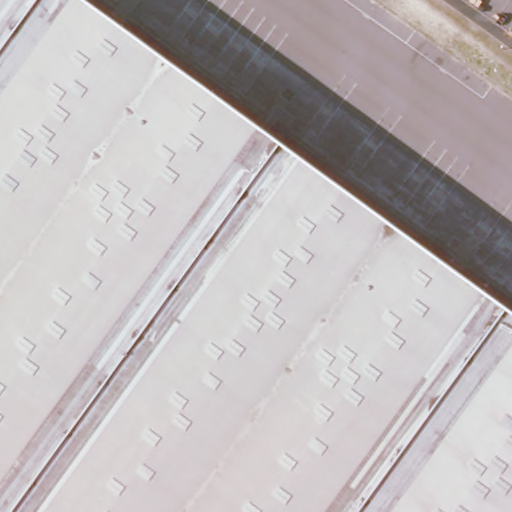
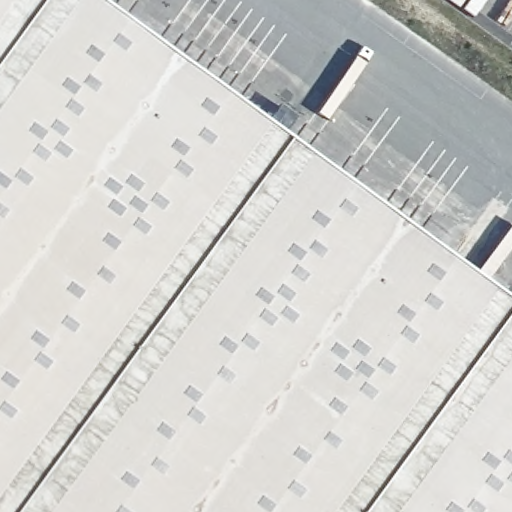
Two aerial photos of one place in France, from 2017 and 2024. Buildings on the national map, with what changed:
unchanged [(512,311),(512,512),(0,512),(0,0),(87,0),(512,311)]

